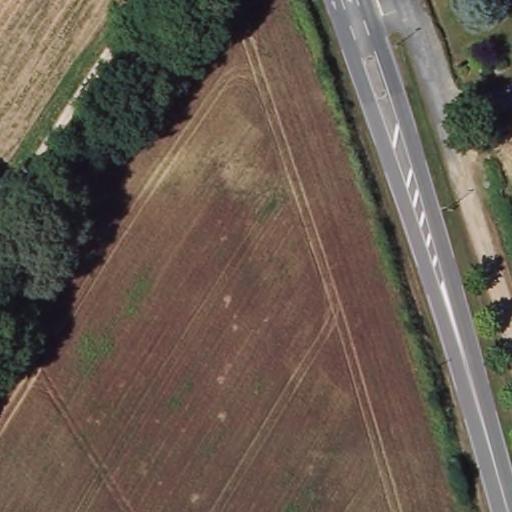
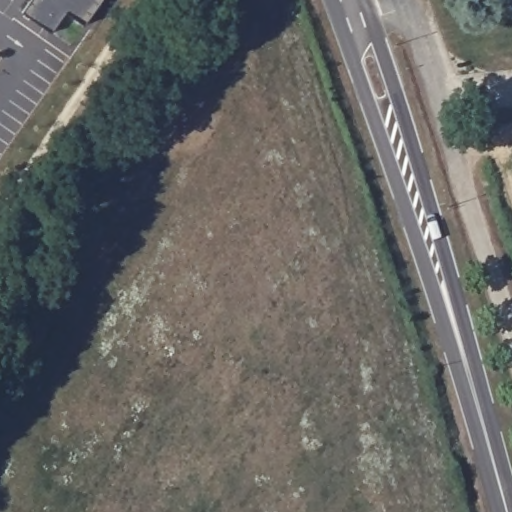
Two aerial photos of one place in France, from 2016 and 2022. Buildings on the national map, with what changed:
new [(85,25),(66,13),(52,33),(23,12),(31,0),(102,0),(85,25)]

